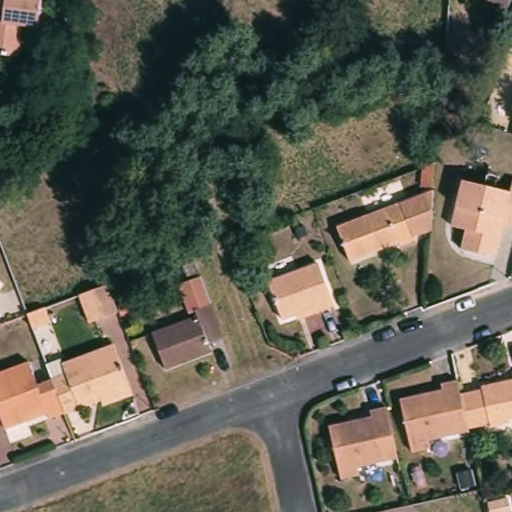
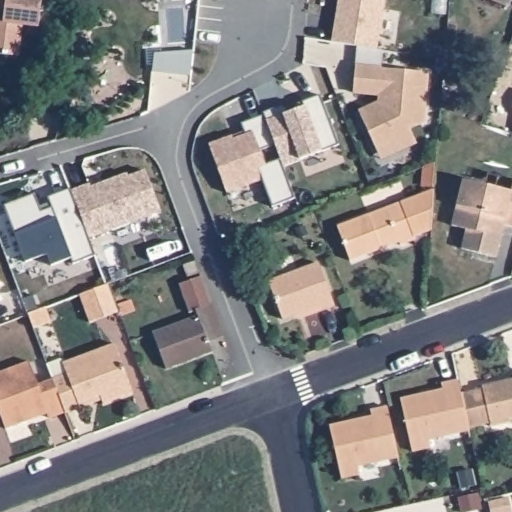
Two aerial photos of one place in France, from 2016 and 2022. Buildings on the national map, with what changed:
unchanged [(42,0),(38,30),(22,27),(18,59),(0,56),(0,0),(42,0)]
new [(372,147),(358,116),(356,112),(377,103),(377,96),(351,94),(353,68),(355,47),(330,44),(337,0),(382,0),(374,51),(381,52),(379,70),(425,75),(420,125),(407,131),(411,139),(414,145),(378,160),(372,147)]
unchanged [(511,0),(507,11),(476,0),(511,0)]
unchanged [(460,17),(456,62),(442,61),(445,35),(447,16),(460,17)]
demolished [(111,91),(106,114),(109,115),(108,121),(95,117),(93,125),(71,119),(82,84),(111,91)]
new [(439,88),(465,96),(459,115),(438,109),(439,88)]
new [(283,106),(286,114),(302,108),(300,104),(319,96),(337,146),(281,167),(278,160),(273,146),(262,115),(261,114),(283,106)]
new [(229,136),(231,140),(243,135),(239,124),(262,115),(273,146),(259,151),(264,165),(278,160),(281,167),(293,200),(270,208),(260,182),(225,195),(207,145),(229,136)]
new [(88,185),(91,192),(102,188),(101,184),(125,174),(126,177),(143,171),(158,212),(87,240),(69,191),(88,185)]
unchanged [(466,229),(452,224),(456,204),(463,180),(512,191),(512,226),(504,224),(496,256),(462,249),(466,229)]
new [(33,195),(39,212),(50,209),(46,198),(69,190),(69,191),(87,240),(94,257),(71,265),(69,260),(49,267),(45,255),(23,264),(1,206),(33,195)]
unchanged [(437,192),(438,231),(417,238),(405,206),(437,192)]
unchanged [(343,230),(402,208),(405,206),(417,238),(413,240),(405,243),(403,240),(353,258),(343,230)]
unchanged [(322,265),(337,307),(321,313),(319,309),(287,321),(273,283),(322,265)]
unchanged [(168,369),(155,335),(201,318),(198,312),(192,315),(182,286),(203,278),(213,304),(225,337),(211,343),(214,351),(168,369)]
unchanged [(2,286),(0,289),(0,284),(2,286)]
unchanged [(89,326),(78,296),(106,285),(117,315),(89,326)]
unchanged [(68,413),(56,380),(51,366),(65,361),(67,365),(117,346),(135,395),(106,406),(103,400),(83,408),(68,413)]
unchanged [(53,419),(49,408),(24,418),(26,423),(10,430),(0,404),(0,374),(33,362),(41,386),(56,380),(68,413),(53,419)]
unchanged [(430,440),(433,448),(412,452),(400,400),(443,390),(442,383),(458,380),(463,404),(469,431),(430,440)]
unchanged [(510,423),(492,427),(483,386),(512,380),(512,418),(509,418),(510,423)]
unchanged [(372,416),(370,410),(386,407),(397,458),(358,467),(360,474),(341,478),(329,425),(372,416)]
unchanged [(460,487),(457,474),(471,471),(474,485),(460,487)]
unchanged [(490,505),(501,503),(502,512),(491,512),(490,505)]

